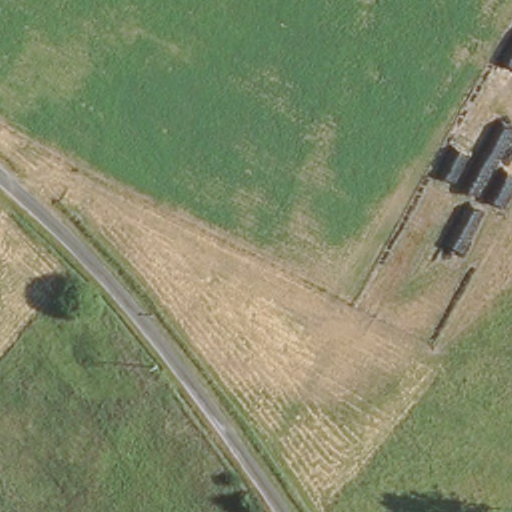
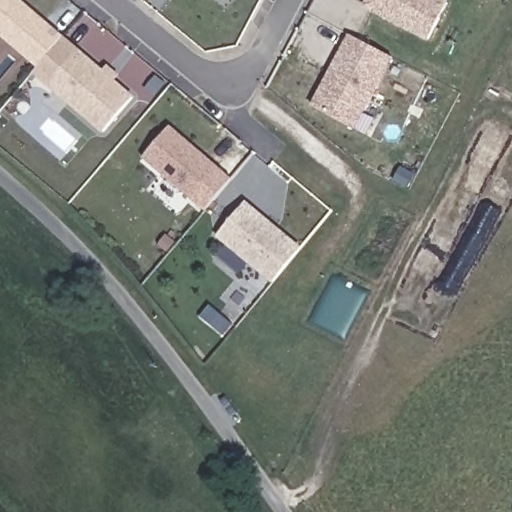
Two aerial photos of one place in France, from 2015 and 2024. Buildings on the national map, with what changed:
new [(36,66),(28,60),(0,35),(0,0),(15,0),(52,32),(59,39),(36,66)]
new [(437,19),(426,41),(363,7),(367,0),(437,0),(445,5),(437,19)]
new [(347,35),(354,39),(390,58),(352,130),(310,106),(322,85),(347,35)]
new [(100,73),(104,68),(113,76),(109,81),(129,98),(100,132),(46,85),(75,51),(100,73)]
new [(155,76),(163,84),(153,95),(144,89),(155,76)]
new [(215,169),(188,200),(140,158),(167,126),(215,169)]
new [(242,204),(297,250),(270,283),(213,236),(242,204)]

